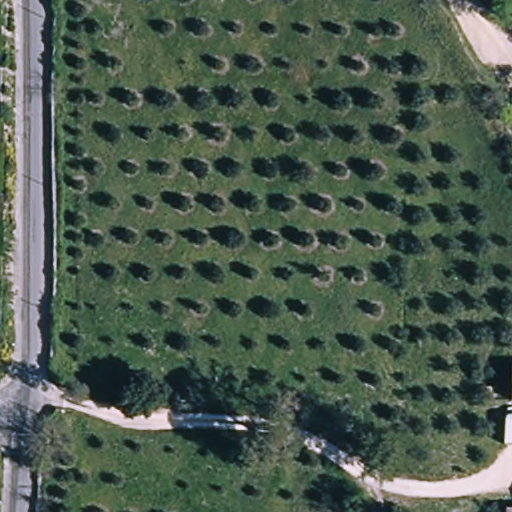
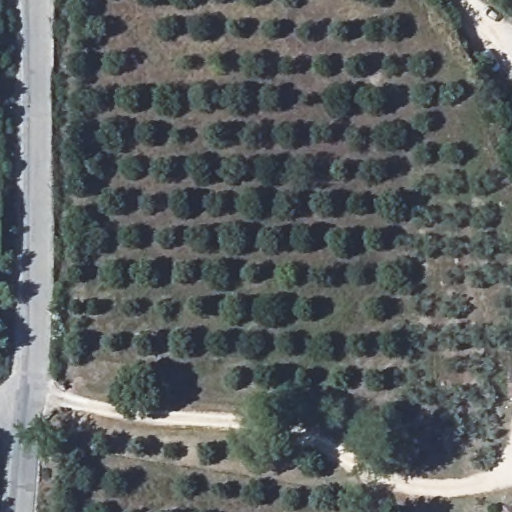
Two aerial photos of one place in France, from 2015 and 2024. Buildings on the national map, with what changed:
unchanged [(505,508),(512,509),(512,512),(505,512),(505,508)]

